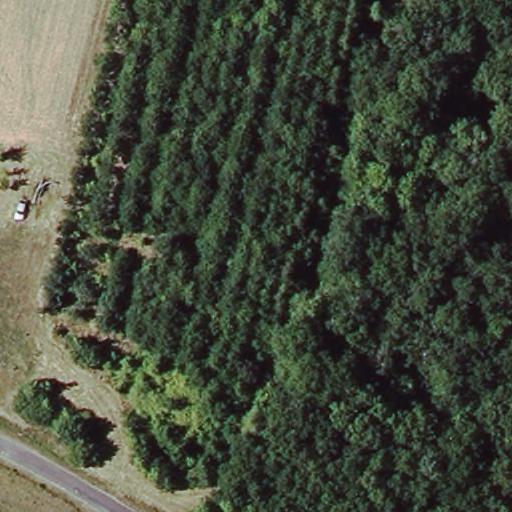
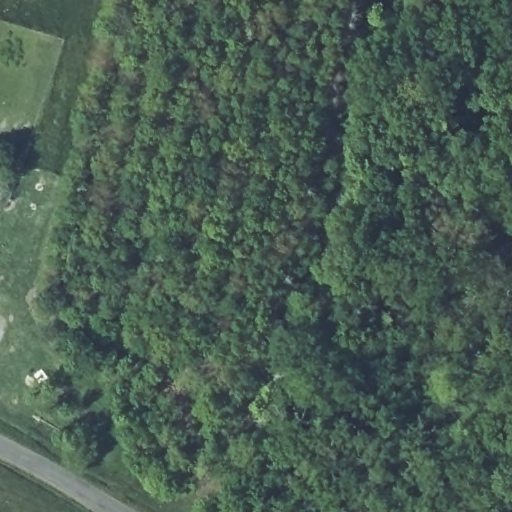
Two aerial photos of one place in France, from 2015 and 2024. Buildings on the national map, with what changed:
[]

